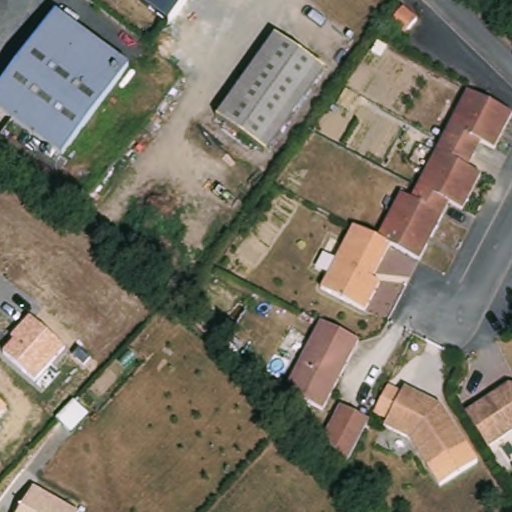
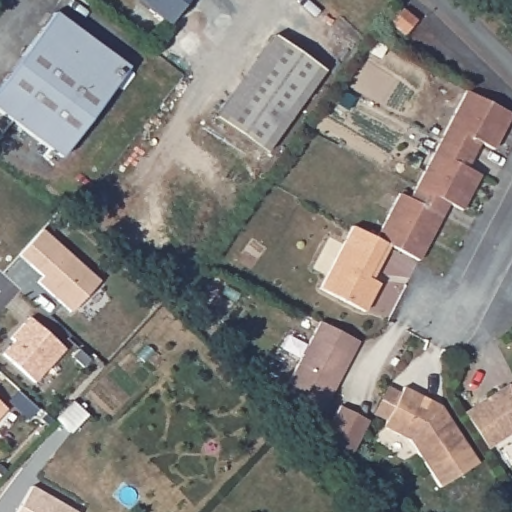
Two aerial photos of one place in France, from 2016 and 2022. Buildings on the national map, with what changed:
unchanged [(135,0),(186,0),(167,24),(135,0)]
unchanged [(391,17),(379,32),(365,20),(377,6),(391,17)]
unchanged [(135,66),(64,153),(0,100),(0,87),(64,7),(135,66)]
unchanged [(324,74),(265,157),(216,122),(274,39),(324,74)]
unchanged [(467,92),(512,116),(494,150),(481,143),(474,156),(442,140),(467,92)]
unchanged [(474,156),(468,169),(481,176),(463,211),(449,204),(417,187),(442,140),(474,156)]
unchanged [(401,193),(412,199),(417,187),(449,204),(419,261),(393,247),(396,242),(380,234),(401,193)]
unchanged [(386,280),(371,308),(327,286),(334,272),(350,241),(359,223),(380,234),(396,242),(393,247),(387,258),(378,276),(386,280)]
new [(44,232),(100,284),(72,315),(39,283),(44,278),(21,256),(44,232)]
unchanged [(3,355),(14,343),(10,340),(29,319),(66,351),(35,383),(3,355)]
unchanged [(356,346),(320,415),(282,396),(318,326),(356,346)]
unchanged [(434,468),(416,439),(390,425),(411,386),(440,402),(447,405),(472,445),(434,468)]
unchanged [(512,386),(512,433),(489,445),(472,407),(512,386)]
new [(56,402),(71,416),(54,434),(39,420),(56,402)]
unchanged [(0,416),(0,404),(6,410),(0,416)]
unchanged [(348,404),(364,412),(376,419),(363,446),(357,457),(353,464),(330,437),(348,404)]
unchanged [(78,512),(16,512),(33,485),(78,512)]

